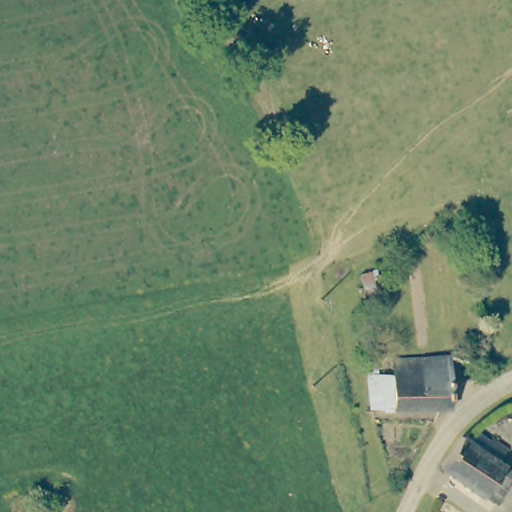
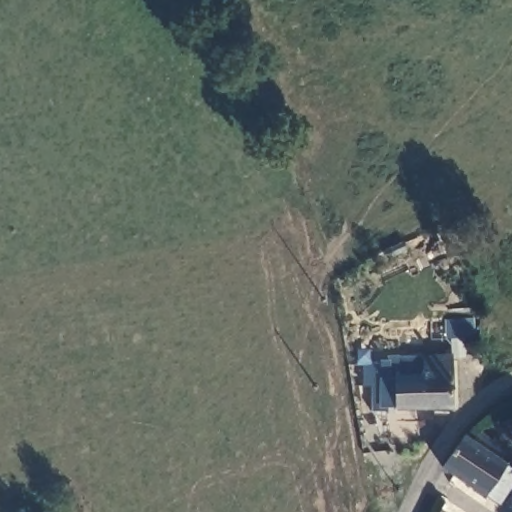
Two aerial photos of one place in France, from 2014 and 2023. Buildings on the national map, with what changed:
unchanged [(388,408),(390,365),(443,364),(443,392),(442,409),(431,408),(388,408)]
unchanged [(458,440),(467,447),(469,444),(475,436),(486,444),(487,445),(490,441),(502,450),(505,452),(498,463),(497,464),(502,467),(512,474),(512,484),(496,507),(482,498),(481,500),(453,481),(437,472),(449,453),(458,440)]

